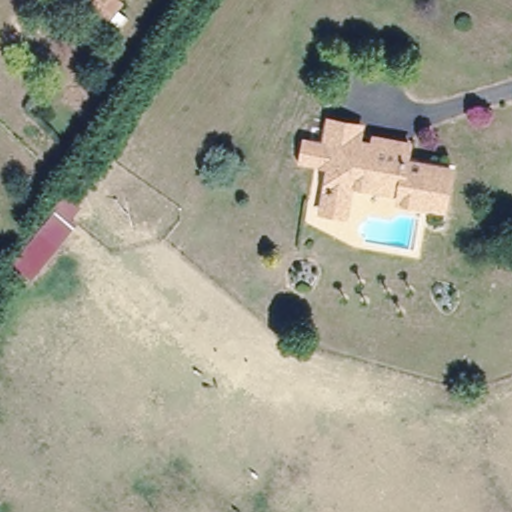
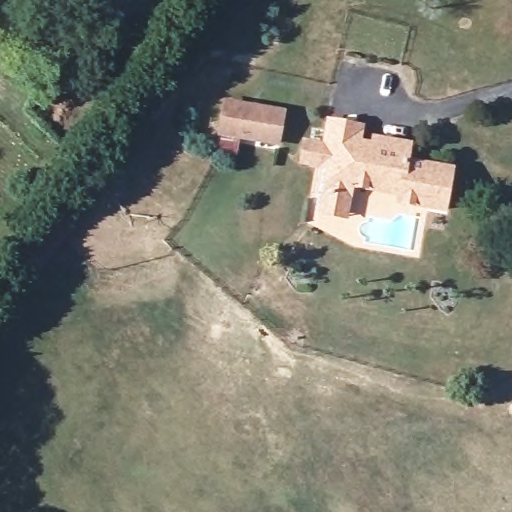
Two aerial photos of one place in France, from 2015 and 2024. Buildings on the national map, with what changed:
unchanged [(113,0),(116,2),(104,19),(84,5),(87,0),(113,0)]
new [(287,109),(282,146),(217,136),(224,98),(287,109)]
unchanged [(322,220),(327,200),(332,175),(298,169),(301,148),(322,151),(326,135),(355,140),(353,153),(369,156),(372,142),(392,147),(408,149),(407,161),(452,170),(445,213),(422,209),(400,206),(400,198),(352,189),(350,204),(346,223),(322,220)]
unchanged [(27,284),(15,275),(39,241),(52,250),(27,284)]

